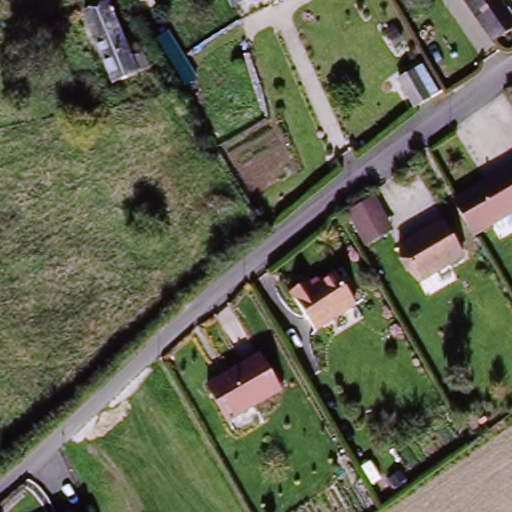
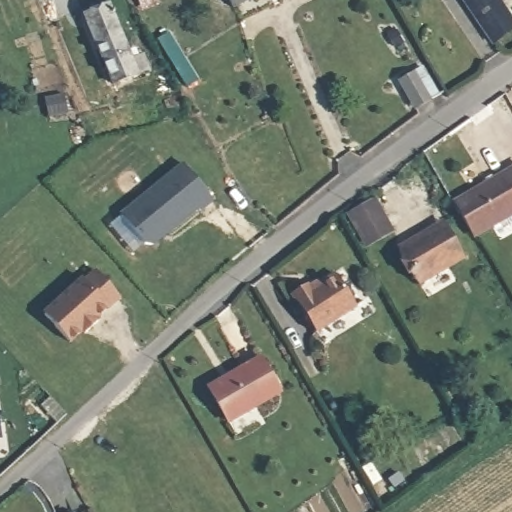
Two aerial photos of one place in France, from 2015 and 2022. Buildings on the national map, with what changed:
unchanged [(234,1),(233,0),(236,0),(234,1)]
unchanged [(512,21),(512,35),(494,47),(464,0),(499,0),(512,21)]
unchanged [(85,22),(96,18),(91,8),(100,4),(128,65),(138,61),(143,71),(114,85),(85,22)]
unchanged [(433,97),(413,110),(399,80),(415,69),(433,97)]
new [(201,213),(198,210),(154,245),(144,243),(121,213),(183,162),(214,202),(201,213)]
unchanged [(458,201),(512,169),(512,216),(478,236),(458,201)]
unchanged [(393,234),(365,249),(346,215),(374,199),(393,234)]
unchanged [(412,243),(441,226),(462,261),(433,278),(419,286),(396,247),(409,240),(412,243)]
new [(110,310),(108,308),(100,316),(101,319),(81,336),(79,333),(70,342),(44,312),(82,278),(84,280),(95,271),(121,300),(110,310)]
unchanged [(338,276),(358,308),(319,332),(296,297),(309,290),(311,293),(338,276)]
unchanged [(260,355),(281,391),(230,421),(209,385),(260,355)]
new [(0,440),(0,427),(2,440),(0,440)]

